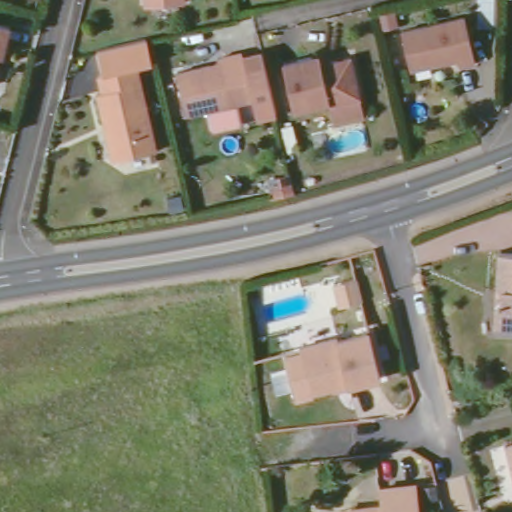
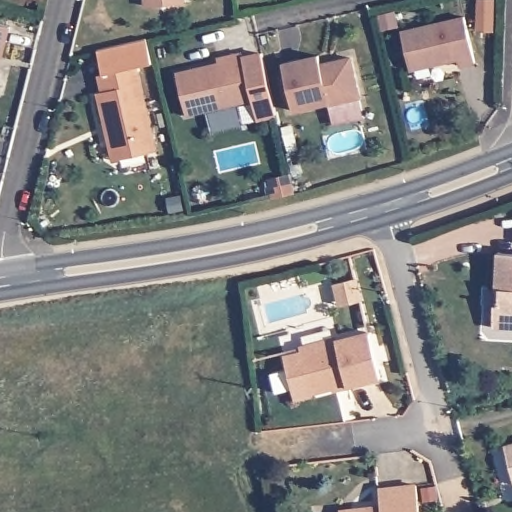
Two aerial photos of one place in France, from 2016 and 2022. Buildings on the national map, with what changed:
unchanged [(179,1),(137,7),(136,0),(178,0),(179,1)]
unchanged [(387,11),(389,26),(374,29),(371,14),(387,11)]
unchanged [(460,18),(471,64),(452,70),(449,62),(405,72),(397,32),(460,18)]
unchanged [(6,28),(0,51),(0,27),(6,28)]
unchanged [(168,119),(158,76),(206,64),(205,57),(223,53),(224,58),(235,102),(168,119)]
unchanged [(257,117),(239,122),(235,102),(224,58),(243,54),(257,117)]
unchanged [(314,57),(317,71),(328,69),(327,63),(346,59),(355,98),(289,113),(279,65),(314,57)]
unchanged [(98,127),(92,95),(95,89),(93,78),(137,69),(153,153),(111,161),(104,128),(98,127)]
unchanged [(292,177),(293,182),(292,194),(274,197),(271,181),(292,177)]
unchanged [(496,249),(512,249),(512,325),(491,324),(496,249)]
unchanged [(350,276),(356,297),(342,302),(335,304),(328,282),(336,280),(350,276)]
unchanged [(329,386),(308,392),(305,383),(294,344),(330,334),(331,337),(361,328),(375,377),(345,384),(332,389),(329,386)]
unchanged [(512,441),(512,483),(502,443),(512,441)]
unchanged [(418,512),(346,512),(346,509),(375,506),(376,489),(415,485),(418,512)]

